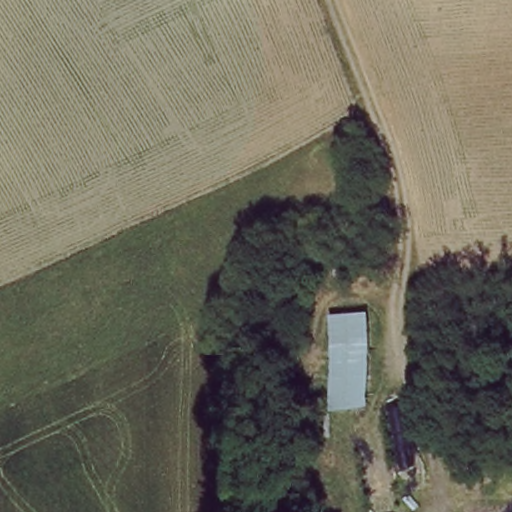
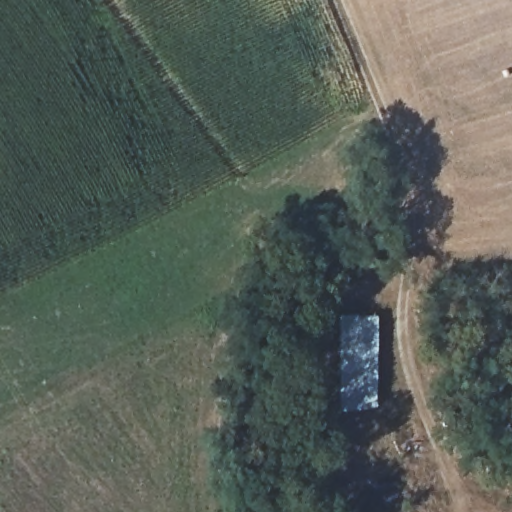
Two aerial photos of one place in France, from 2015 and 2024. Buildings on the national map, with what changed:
unchanged [(384,405),(365,406),(350,407),(341,407),(340,310),(380,305),(384,405)]

